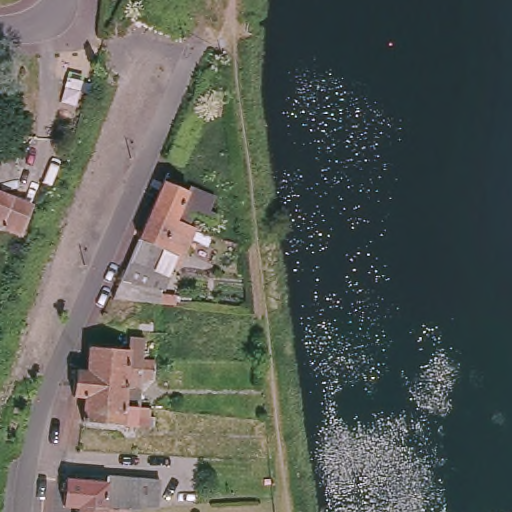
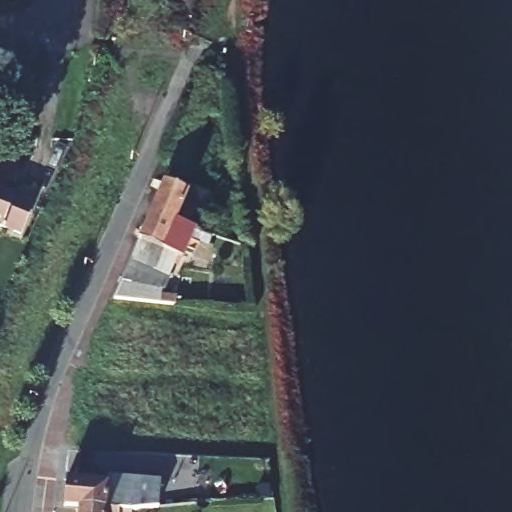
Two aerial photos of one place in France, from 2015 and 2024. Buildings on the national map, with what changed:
unchanged [(195,174),(182,169),(170,163),(175,150),(170,148),(196,89),(207,66),(220,72),(210,94),(184,154),(187,156),(201,162),(195,174)]
unchanged [(167,172),(190,182),(192,178),(217,188),(210,202),(217,205),(214,213),(207,211),(203,221),(155,200),(167,172)]
unchanged [(28,210),(16,239),(0,232),(0,199),(28,210)]
unchanged [(190,250),(182,247),(163,295),(112,290),(139,237),(155,200),(203,221),(190,250)]
demolished [(119,317),(150,320),(149,333),(117,331),(119,317)]
demolished [(85,347),(125,350),(127,337),(142,338),(140,359),(152,360),(150,369),(125,367),(125,373),(83,371),(85,347)]
demolished [(125,373),(125,367),(150,369),(150,378),(138,377),(137,387),(124,386),(122,401),(80,397),(69,397),(72,370),(83,371),(125,373)]
demolished [(122,407),(147,410),(147,411),(145,428),(77,422),(80,397),(122,401),(122,407)]
unchanged [(102,488),(102,482),(156,486),(155,507),(155,511),(148,512),(92,512),(75,511),(75,512),(70,512),(60,511),(62,486),(102,488)]
unchanged [(92,512),(75,512),(75,511),(92,512)]

